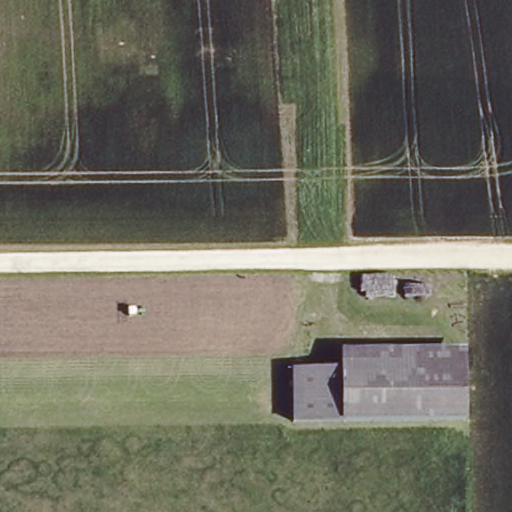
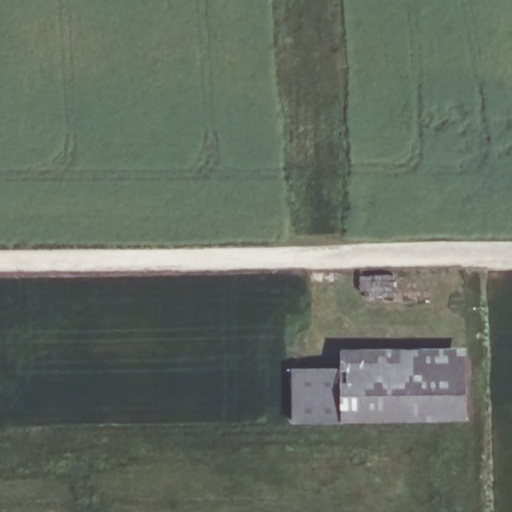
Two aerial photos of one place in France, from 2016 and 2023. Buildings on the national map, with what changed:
unchanged [(470,346),(473,414),(347,416),(345,364),(345,348),(470,346)]
unchanged [(298,417),(298,365),(345,364),(347,416),(298,417)]

